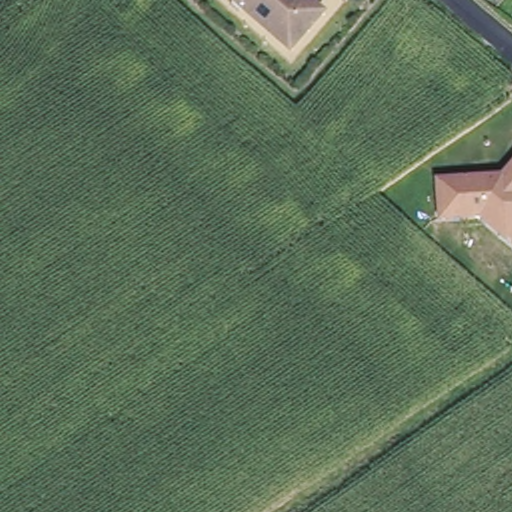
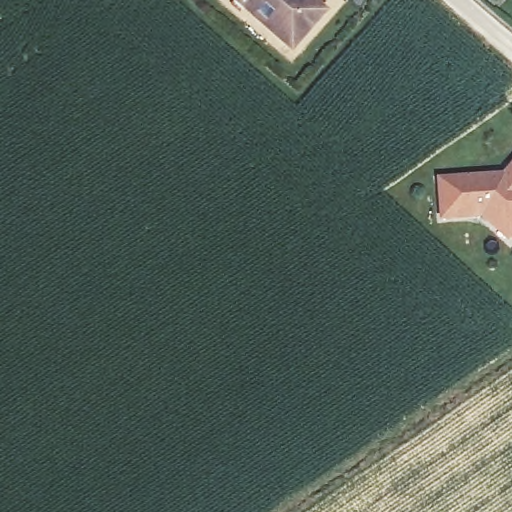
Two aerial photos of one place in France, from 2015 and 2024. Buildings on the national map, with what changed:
unchanged [(323,7),(287,46),(239,0),(315,0),(323,7)]
unchanged [(512,160),(512,244),(480,219),(438,221),(435,176),(503,171),(512,160)]

